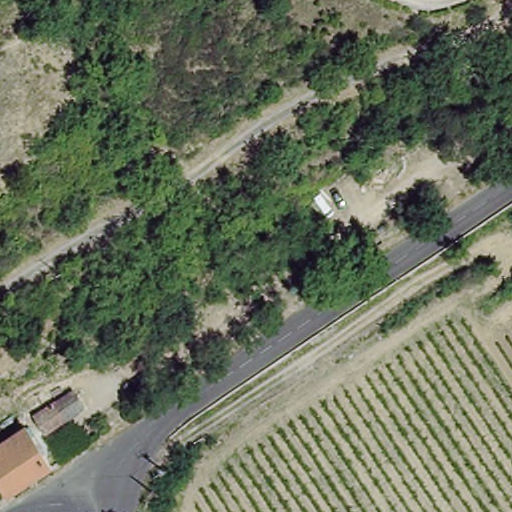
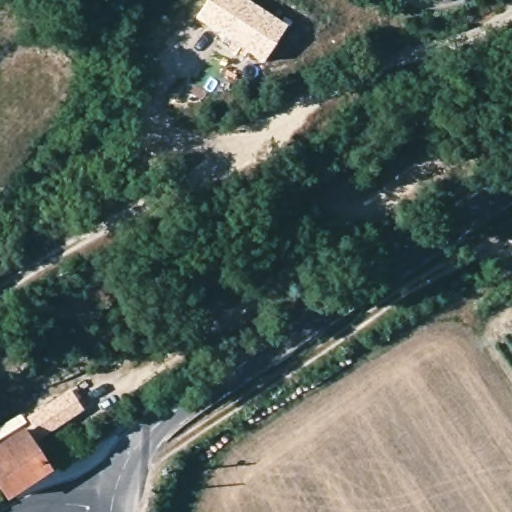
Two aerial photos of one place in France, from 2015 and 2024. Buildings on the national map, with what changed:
new [(207,0),(249,0),(287,26),(262,62),(194,17),(207,0)]
unchanged [(25,430),(29,435),(37,431),(30,411),(74,383),(85,411),(63,425),(69,436),(55,443),(66,460),(54,467),(57,473),(11,502),(0,485),(0,446),(25,430)]

